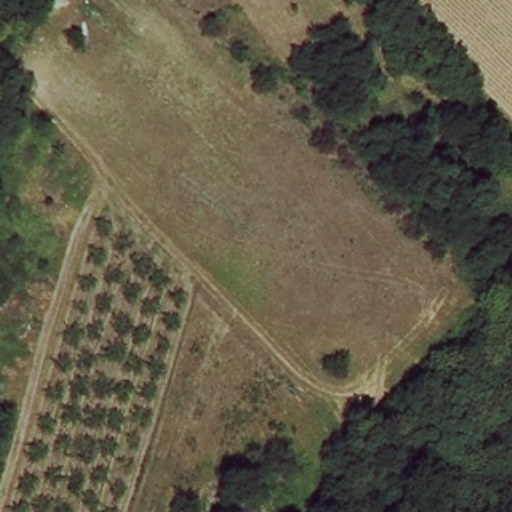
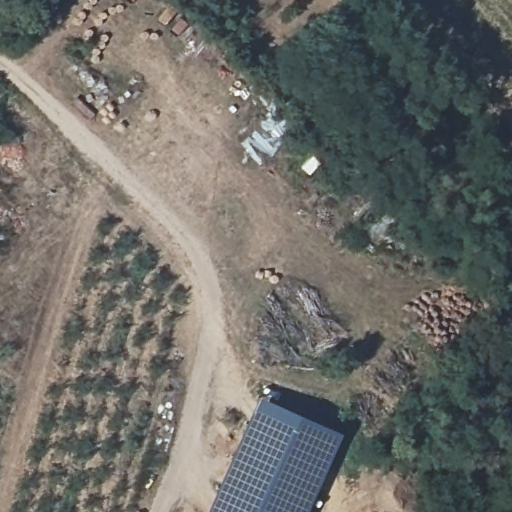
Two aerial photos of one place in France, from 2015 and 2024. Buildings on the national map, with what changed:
new [(237,438),(258,395),(340,432),(305,512),(204,512),(237,438)]

